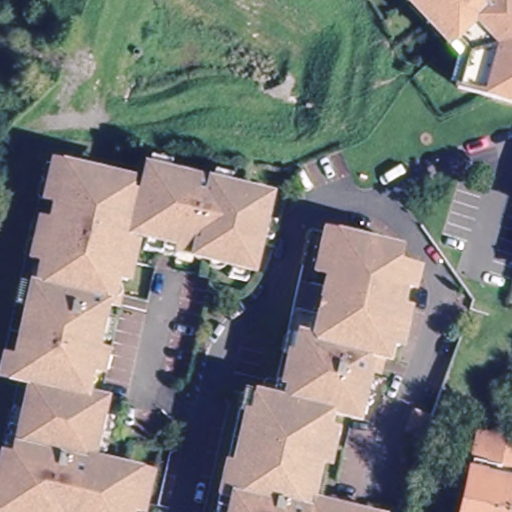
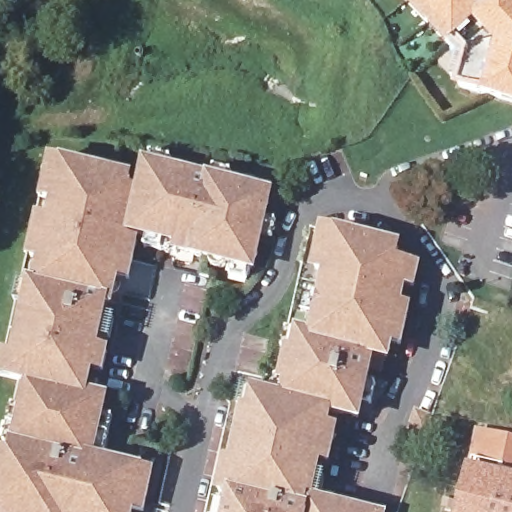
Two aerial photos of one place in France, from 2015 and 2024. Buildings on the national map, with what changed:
unchanged [(408,0),(512,0),(512,92),(466,80),(467,75),(458,73),(465,50),(407,0),(408,0)]
unchanged [(139,505),(138,512),(0,512),(0,506),(4,488),(1,487),(9,454),(21,456),(39,381),(19,376),(7,374),(11,355),(23,358),(41,283),(45,285),(51,258),(39,255),(48,219),(60,221),(65,200),(53,196),(61,160),(62,159),(74,162),(140,177),(138,185),(137,189),(149,192),(150,189),(153,176),(273,215),(270,227),(261,265),(187,247),(188,240),(141,230),(142,225),(137,224),(118,301),(114,300),(103,347),(115,350),(111,369),(99,366),(92,393),(113,397),(98,457),(147,469),(159,472),(151,508),(139,505)]
unchanged [(153,176),(156,164),(278,192),(273,215),(153,176)]
unchanged [(252,387),(272,392),(276,375),(286,377),(316,242),(319,230),(320,226),(405,245),(403,257),(402,260),(415,263),(425,265),(422,276),(421,282),(411,280),(407,301),(416,304),(408,340),(399,338),(395,353),(381,350),(374,377),(384,380),(379,400),(370,398),(367,413),(337,407),(333,425),(342,426),(335,457),(326,455),(317,497),(383,512),(225,512),(252,387)]
unchanged [(512,512),(461,512),(474,453),(477,440),(512,448),(512,473),(510,481),(512,482),(512,512)]

